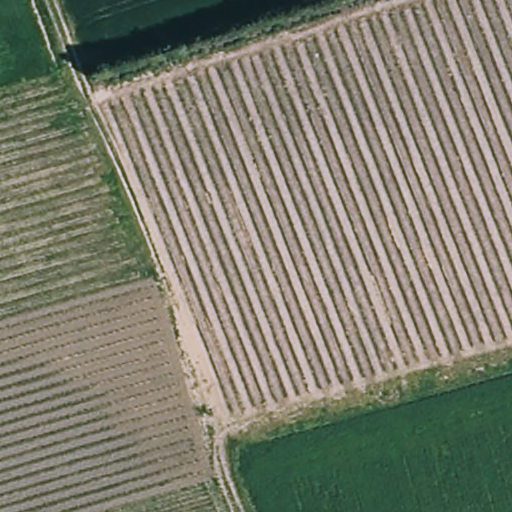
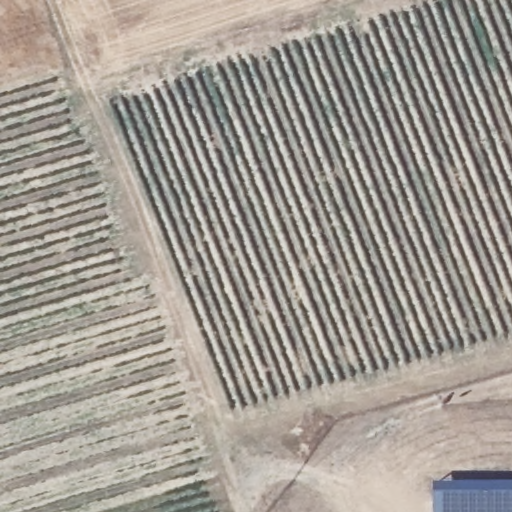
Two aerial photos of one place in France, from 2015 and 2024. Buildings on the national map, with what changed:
new [(434,483),(512,483),(512,512),(435,512),(434,483)]

